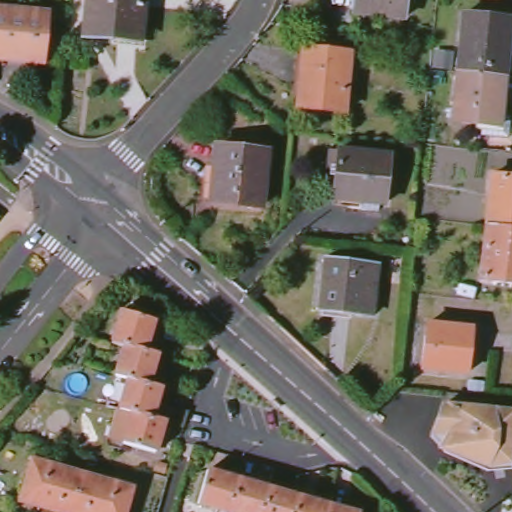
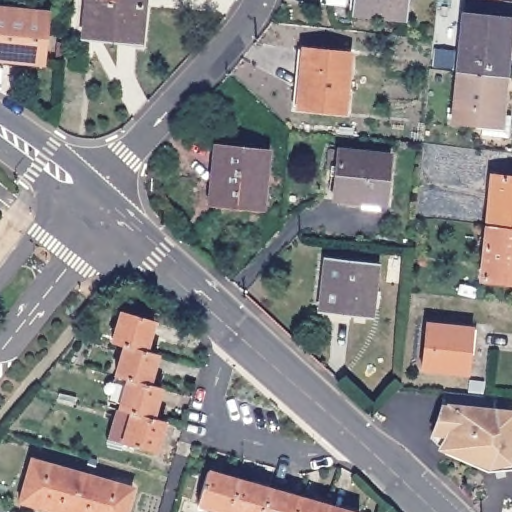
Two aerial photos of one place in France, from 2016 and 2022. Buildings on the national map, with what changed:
unchanged [(84,37),(87,0),(142,0),(138,41),(84,37)]
unchanged [(354,13),(355,0),(404,0),(403,19),(354,13)]
unchanged [(0,10),(46,15),(41,63),(0,59),(0,10)]
unchanged [(457,72),(463,15),(510,20),(504,76),(457,72)]
unchanged [(298,107),(304,50),(349,54),(343,112),(298,107)]
unchanged [(504,76),(499,126),(452,121),(457,72),(504,76)]
unchanged [(214,203),(216,185),(212,185),(216,148),(266,153),(261,207),(214,203)]
unchanged [(334,199),(339,149),(389,154),(384,204),(334,199)]
unchanged [(486,225),(491,176),(512,178),(512,228),(486,225)]
unchanged [(512,228),(512,283),(480,280),(486,225),(512,228)]
unchanged [(321,310),(326,260),(376,266),(371,316),(321,310)]
unchanged [(124,350),(110,346),(119,315),(153,324),(144,355),(124,350)]
unchanged [(422,369),(427,324),(466,328),(464,352),(469,353),(467,374),(422,369)]
unchanged [(113,380),(124,350),(144,355),(156,358),(148,389),(113,380)]
unchanged [(129,417),(105,411),(113,380),(148,389),(158,392),(150,423),(129,417)]
unchanged [(507,404),(505,417),(512,418),(512,469),(498,474),(454,455),(461,441),(441,441),(450,424),(452,398),(507,404)]
unchanged [(150,423),(163,426),(155,457),(121,449),(129,417),(150,423)]
unchanged [(57,512),(20,501),(30,461),(82,475),(72,512),(57,512)]
unchanged [(221,512),(196,504),(205,470),(236,480),(228,512),(221,512)]
unchanged [(131,488),(124,512),(72,512),(82,475),(131,488)]
unchanged [(228,512),(236,480),(266,489),(260,512),(228,512)]
unchanged [(260,512),(266,489),(298,498),(294,512),(260,512)]
unchanged [(294,512),(298,498),(329,507),(327,512),(294,512)]
unchanged [(348,512),(327,512),(329,507),(348,512)]

